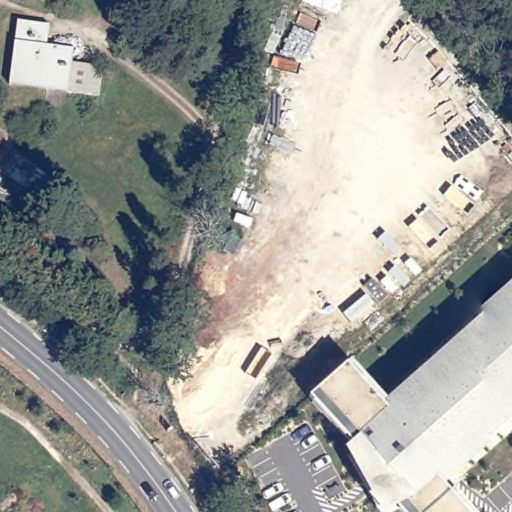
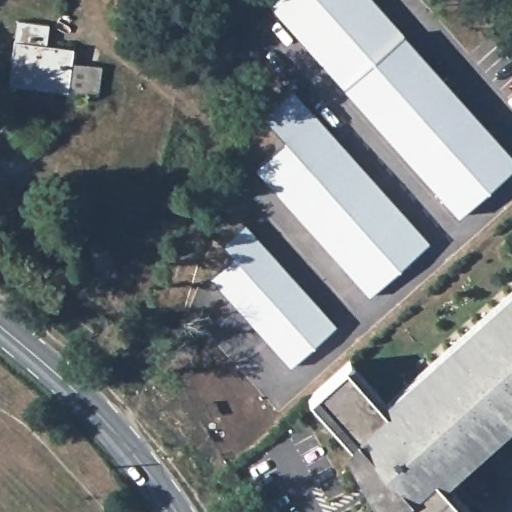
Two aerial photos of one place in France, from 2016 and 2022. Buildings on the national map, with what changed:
new [(343,86),(269,3),(273,0),(377,0),(405,32),(512,153),(512,167),(458,215),(343,86)]
unchanged [(17,19),(51,23),(48,43),(73,46),(71,63),(101,67),(97,96),(68,92),(9,85),(17,19)]
new [(369,295),(254,167),(284,139),(261,113),(292,86),(430,241),(369,295)]
new [(290,365),(210,275),(232,255),(220,241),(244,221),(336,323),(290,365)]

